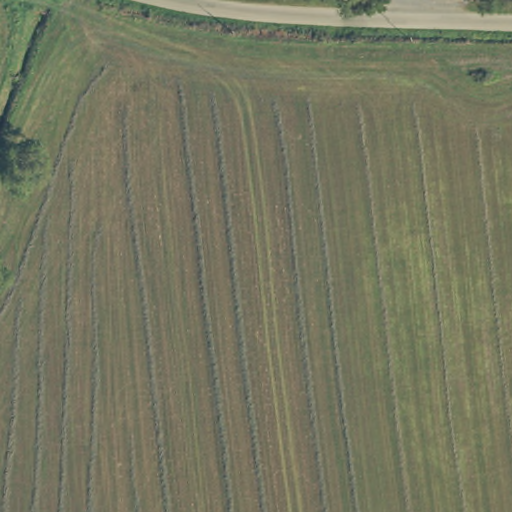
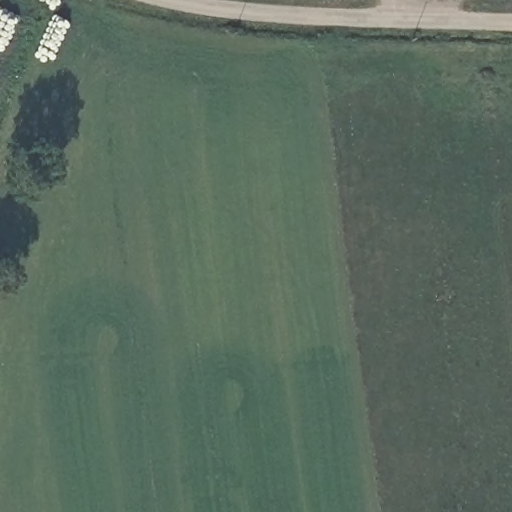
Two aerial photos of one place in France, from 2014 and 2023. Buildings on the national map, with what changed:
[]

